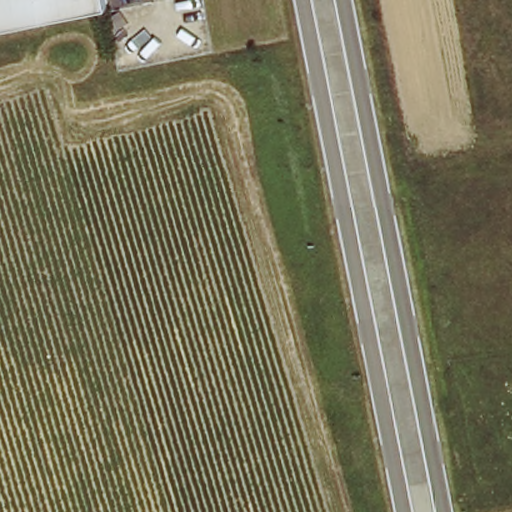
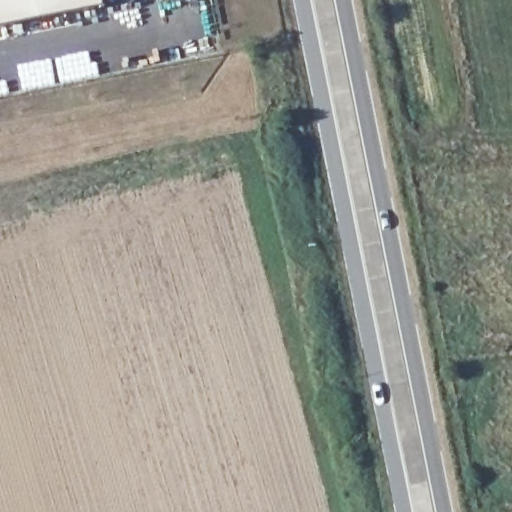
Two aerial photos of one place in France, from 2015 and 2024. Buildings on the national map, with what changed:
unchanged [(0,38),(0,0),(105,0),(108,16),(0,38)]

